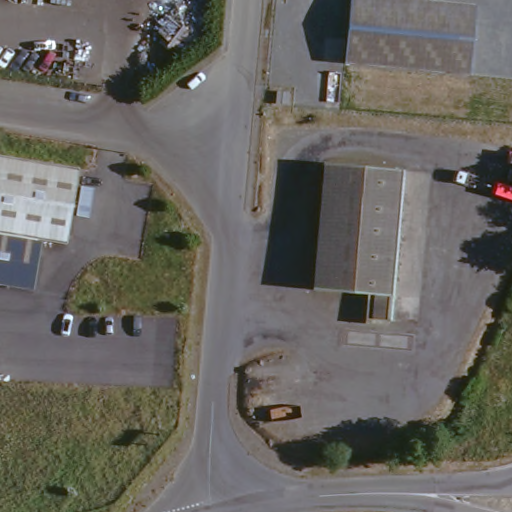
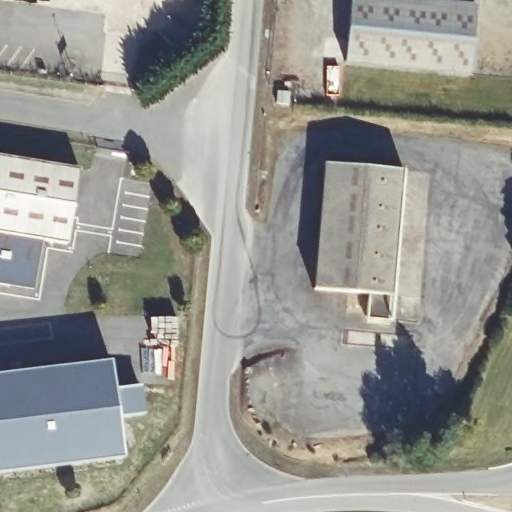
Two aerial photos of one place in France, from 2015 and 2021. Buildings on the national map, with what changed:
unchanged [(351,0),(445,0),(480,4),(473,71),(345,58),(351,0)]
unchanged [(276,89),(288,90),(288,102),(276,101),(276,89)]
unchanged [(42,244),(0,235),(0,158),(80,169),(65,247),(42,244)]
unchanged [(388,327),(364,326),(366,300),(309,296),(320,170),(401,177),(388,327)]
unchanged [(42,244),(35,287),(0,281),(0,235),(42,244)]
new [(110,362),(114,390),(140,386),(145,415),(118,418),(123,458),(0,474),(0,375),(110,362)]

